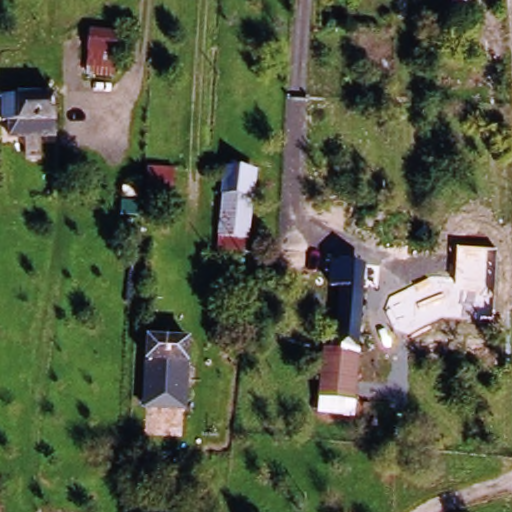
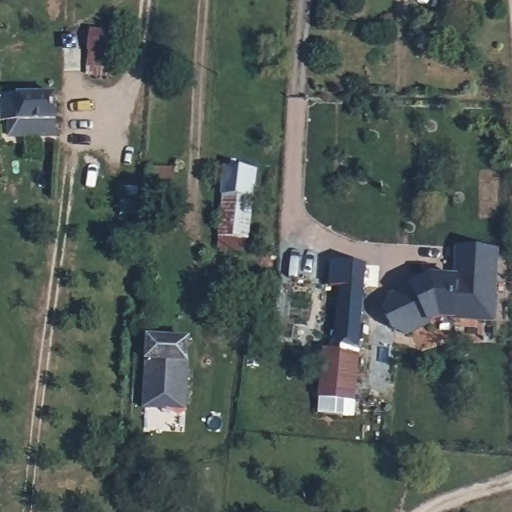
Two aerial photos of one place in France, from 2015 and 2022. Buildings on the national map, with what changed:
unchanged [(465,16),(465,0),(478,0),(477,17),(465,16)]
unchanged [(93,46),(117,49),(115,71),(91,69),(93,46)]
unchanged [(57,94),(59,137),(11,140),(10,124),(2,124),(2,96),(57,94)]
unchanged [(228,170),(256,171),(255,247),(225,245),(228,170)]
new [(497,323),(444,320),(411,337),(398,332),(389,313),(393,299),(435,279),(459,281),(461,251),(501,253),(497,323)]
unchanged [(338,359),(343,290),(332,289),(334,270),(368,272),(363,361),(338,359)]
unchanged [(191,335),(189,405),(145,404),(147,333),(191,335)]
unchanged [(361,408),(324,405),(327,359),(338,359),(363,361),(361,408)]

